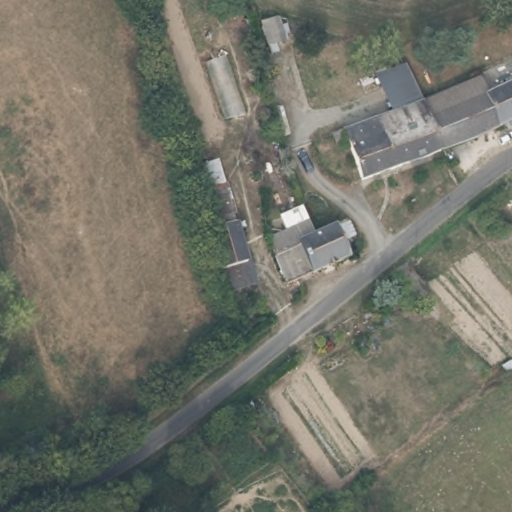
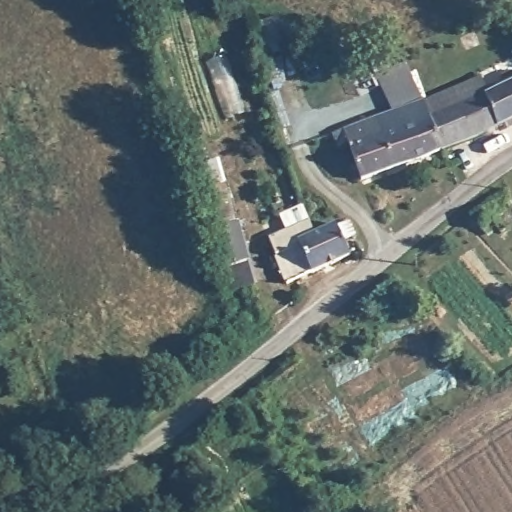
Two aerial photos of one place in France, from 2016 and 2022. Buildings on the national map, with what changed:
unchanged [(440,155),(419,105),(478,83),(482,98),(512,85),(512,123),(450,150),(440,155)]
unchanged [(392,174),(374,126),(414,107),(419,105),(440,155),(392,174)]
unchanged [(360,187),(342,141),(374,126),(392,174),(360,187)]
unchanged [(216,164),(252,280),(225,290),(185,170),(216,164)]
unchanged [(304,280),(278,291),(259,246),(280,238),(284,236),(278,221),(301,211),(306,226),(310,237),(332,230),(341,226),(349,241),(337,247),(346,263),(304,280)]

